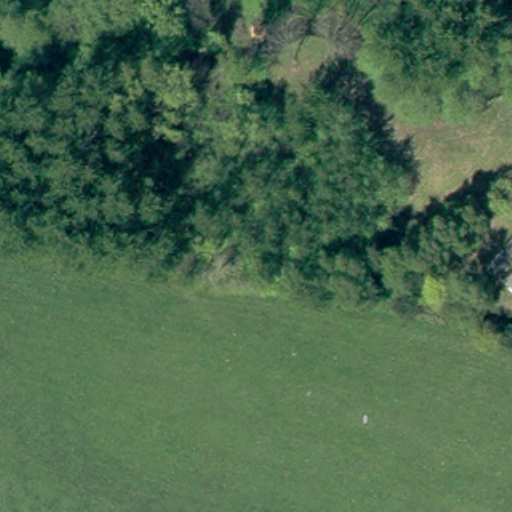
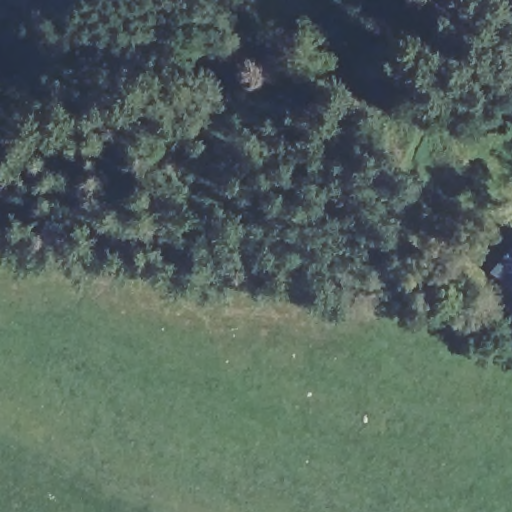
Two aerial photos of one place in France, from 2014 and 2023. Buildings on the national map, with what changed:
unchanged [(511,287),(492,271),(512,247),(512,287),(511,287)]

